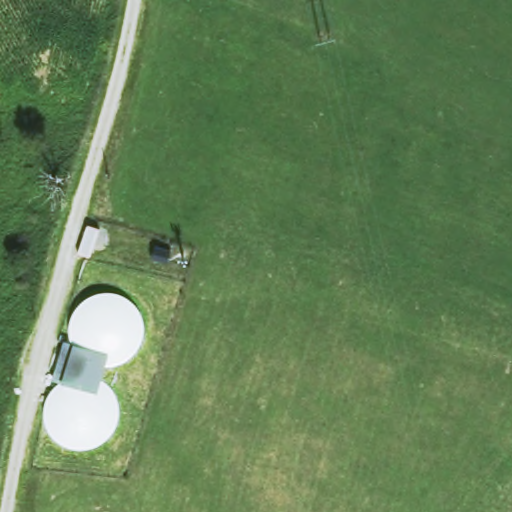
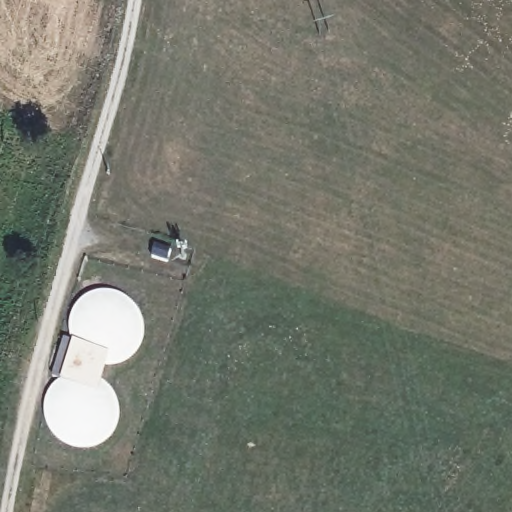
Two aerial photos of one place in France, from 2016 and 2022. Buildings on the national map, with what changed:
unchanged [(214,243),(230,248),(226,259),(210,254),(214,243)]

